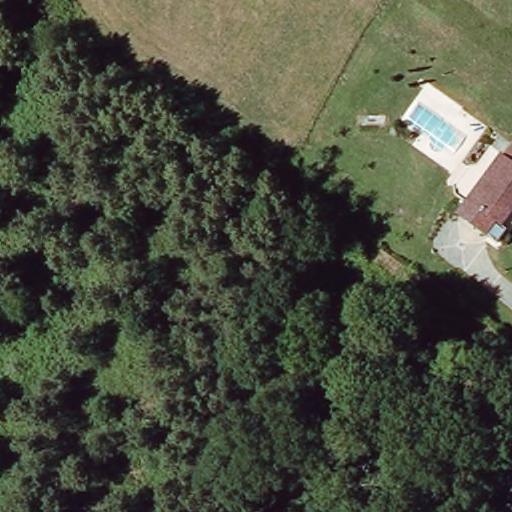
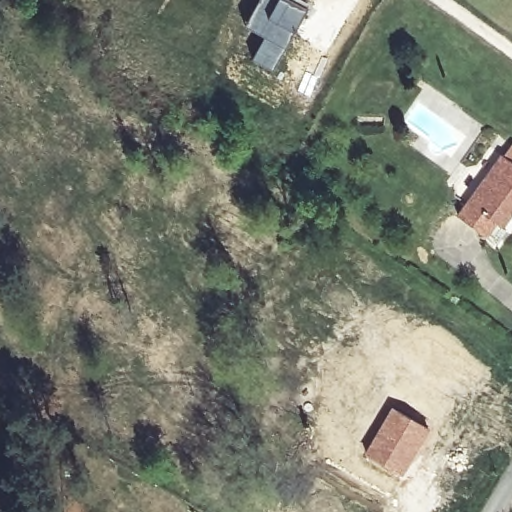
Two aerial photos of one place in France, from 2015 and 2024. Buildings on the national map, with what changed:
new [(304,0),(311,3),(271,70),(251,60),(263,37),(244,25),(258,0),(304,0)]
unchanged [(508,226),(501,221),(490,235),(461,215),(512,143),(512,220),(508,226)]
new [(392,406),(429,430),(401,476),(363,455),(392,406)]

